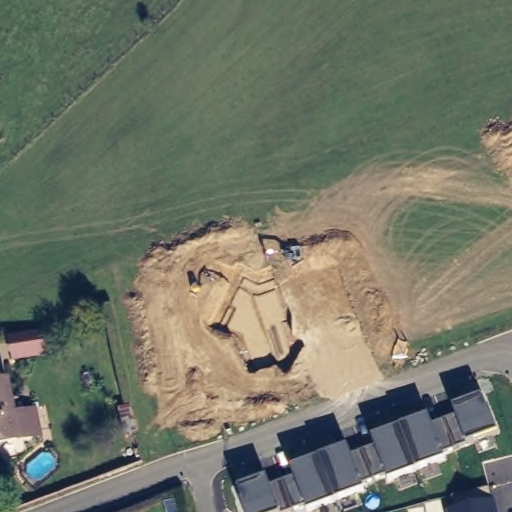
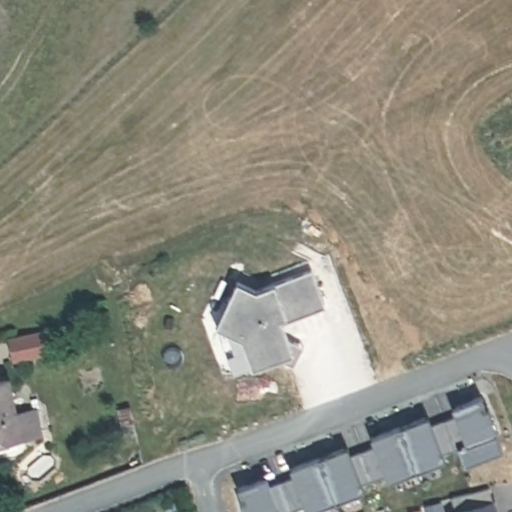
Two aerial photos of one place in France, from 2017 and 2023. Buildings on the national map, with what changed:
new [(255,370),(243,340),(217,327),(240,282),(257,290),(275,284),(312,271),(327,308),(283,324),(290,341),(305,349),(295,366),(282,360),(255,370)]
new [(45,333),(49,353),(15,359),(11,340),(45,333)]
unchanged [(0,447),(0,383),(12,381),(18,414),(41,410),(43,433),(22,437),(23,442),(0,447)]
unchanged [(442,453),(446,458),(387,481),(385,475),(361,485),(363,490),(306,512),(303,505),(283,512),(244,512),(237,491),(266,479),(270,486),(293,478),(290,468),(347,447),(352,457),(375,448),(371,438),(428,415),(432,424),(457,416),(453,406),(482,396),(497,432),(466,444),(442,453)]
unchanged [(453,507),(450,499),(489,489),(492,501),(495,500),(498,512),(446,512),(445,509),(453,507)]

